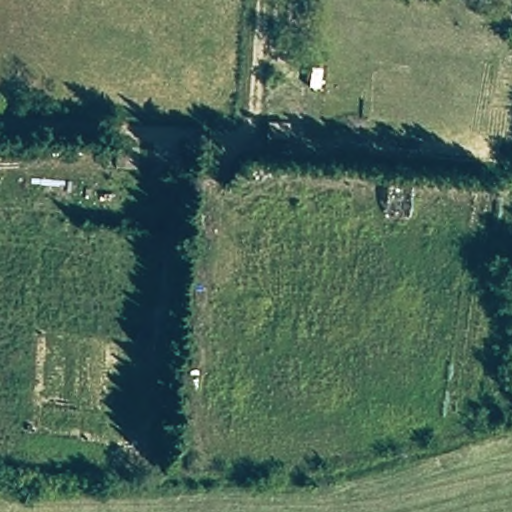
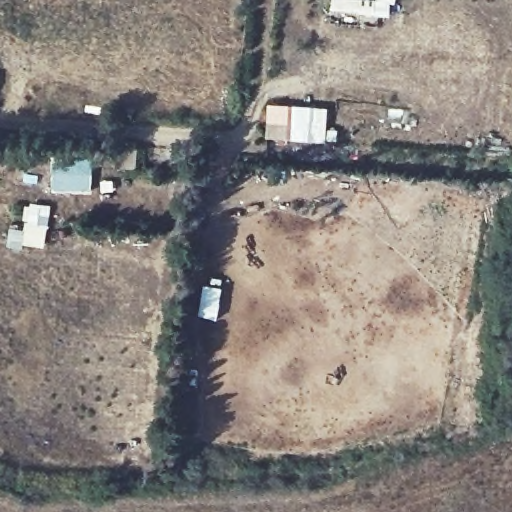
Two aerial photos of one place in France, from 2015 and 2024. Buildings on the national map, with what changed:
new [(326,141),(288,140),(265,139),(266,104),(290,104),(327,107),(326,141)]
unchanged [(43,161),(48,139),(138,146),(135,170),(43,161)]

